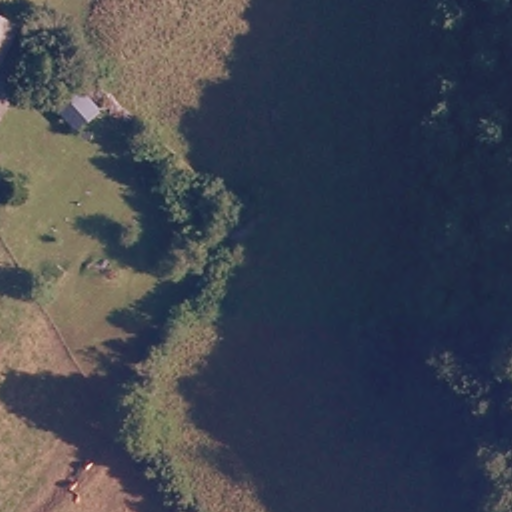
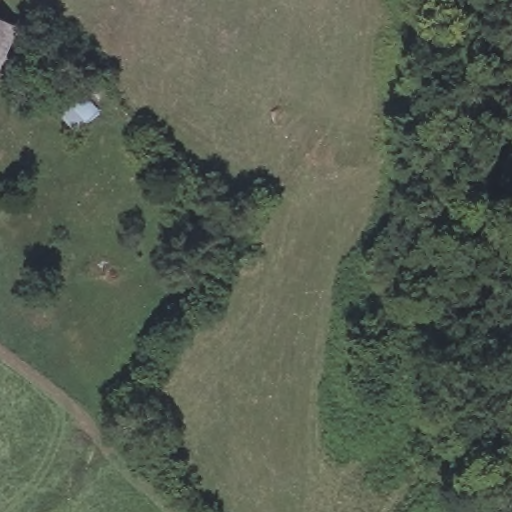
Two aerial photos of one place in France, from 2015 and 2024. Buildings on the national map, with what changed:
unchanged [(0,16),(16,23),(15,27),(0,60),(0,16)]
unchanged [(83,88),(102,110),(75,132),(56,109),(83,88)]

